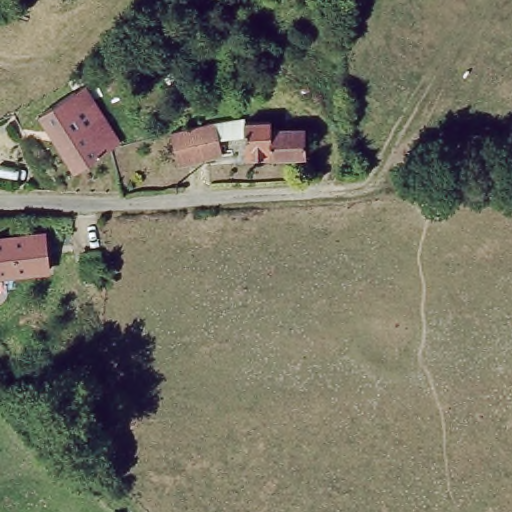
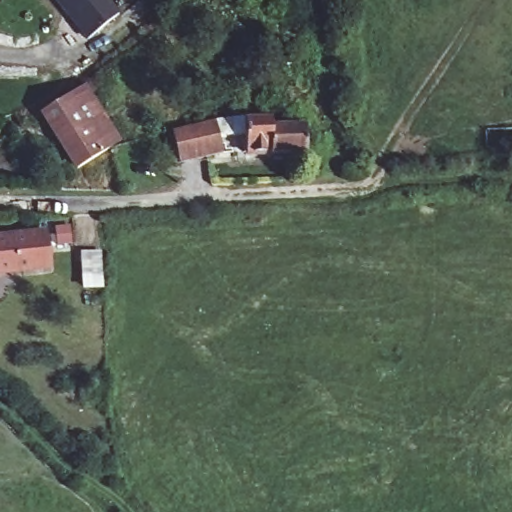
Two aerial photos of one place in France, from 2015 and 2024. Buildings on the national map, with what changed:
new [(108,0),(118,12),(87,38),(55,0),(108,0)]
unchanged [(35,111),(69,90),(79,83),(115,140),(105,146),(71,168),(35,111)]
unchanged [(180,155),(173,124),(212,114),(240,109),(243,109),(243,114),(270,113),(270,121),(282,121),(303,120),(305,146),(245,148),(244,128),(215,131),(220,145),(212,147),(180,155)]
unchanged [(50,271),(0,277),(0,237),(45,232),(50,271)]
unchanged [(97,272),(82,272),(82,260),(97,259),(97,272)]

